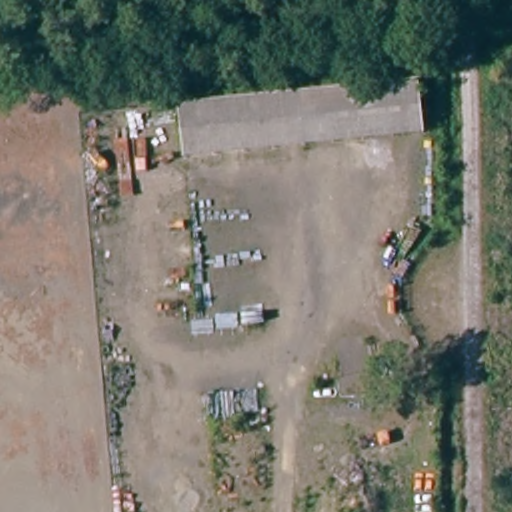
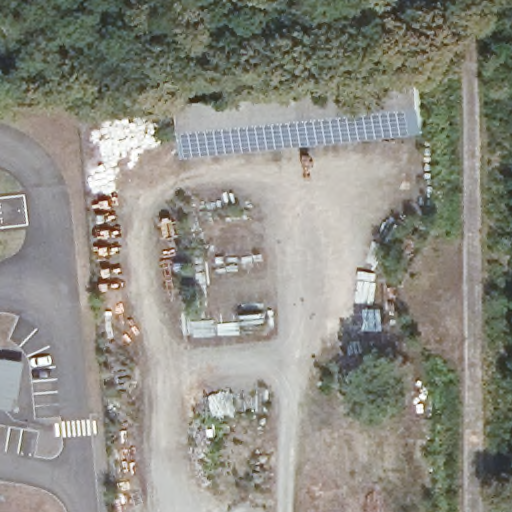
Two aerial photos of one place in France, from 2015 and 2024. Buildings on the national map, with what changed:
unchanged [(181,98),(185,97),(421,76),(425,131),(187,149),(181,98)]
new [(26,362),(21,399),(16,398),(15,410),(0,407),(0,357),(26,362)]

